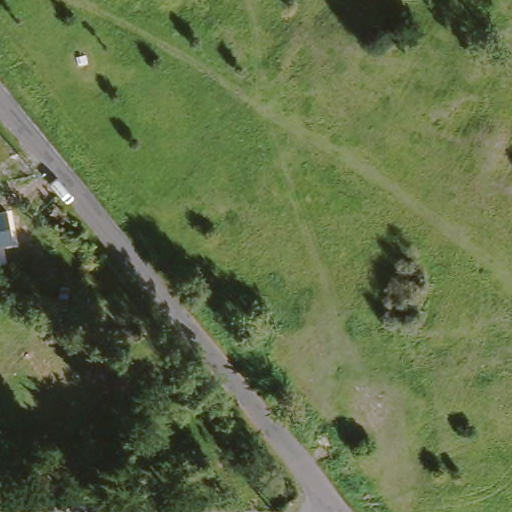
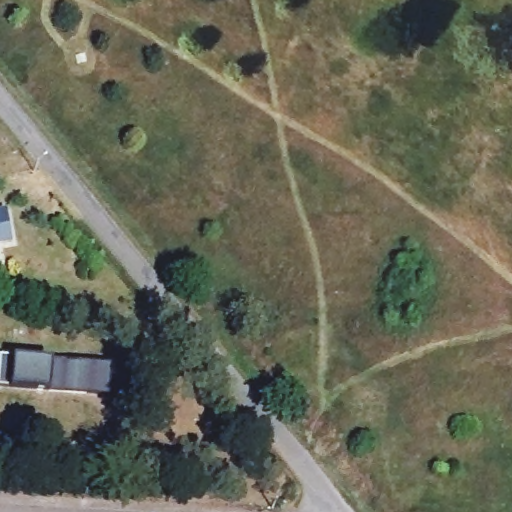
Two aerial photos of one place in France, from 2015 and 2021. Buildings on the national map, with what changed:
unchanged [(2,220),(6,239),(0,240),(0,221),(2,220)]
new [(14,358),(52,362),(110,366),(108,397),(48,391),(10,387),(0,387),(0,362),(1,357),(14,358)]

